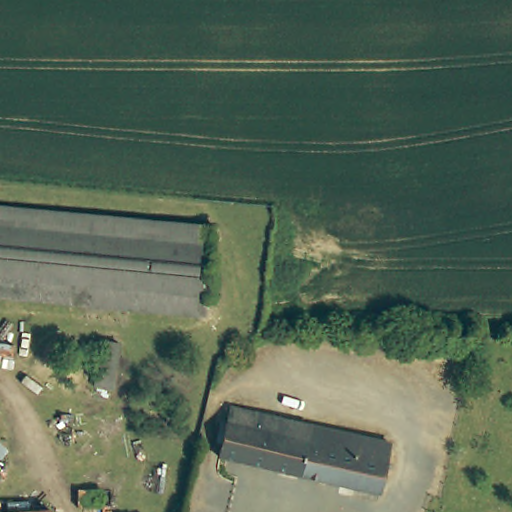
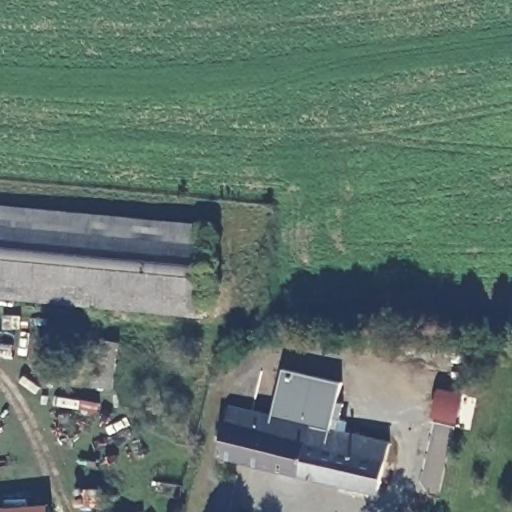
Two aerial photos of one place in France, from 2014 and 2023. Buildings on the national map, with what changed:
unchanged [(0,209),(215,229),(210,317),(0,297),(0,209)]
unchanged [(127,351),(126,397),(104,395),(107,349),(127,351)]
new [(273,417),(283,370),(341,383),(329,431),(273,417)]
unchanged [(392,446),(379,497),(220,458),(232,407),(392,446)]
unchanged [(48,512),(14,512),(47,509),(48,512)]

